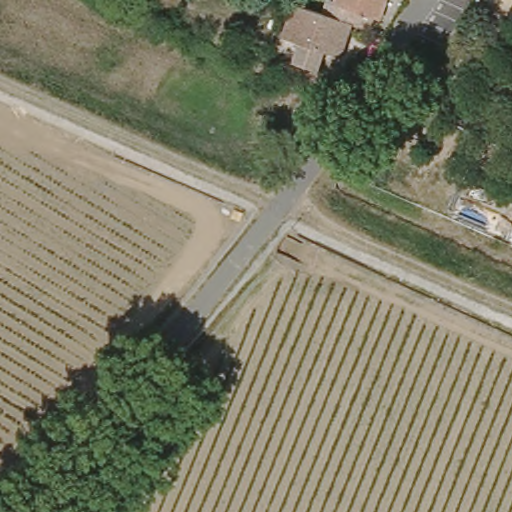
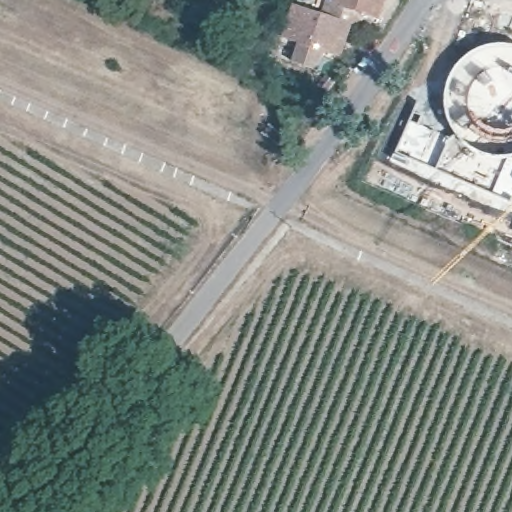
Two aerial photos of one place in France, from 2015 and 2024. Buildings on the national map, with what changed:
unchanged [(327,11),(331,0),(389,0),(384,17),(364,11),(360,24),(370,26),(366,37),(357,34),(349,57),(290,37),(301,2),(327,11)]
new [(485,46),(495,44),(506,44),(512,45),(512,200),(510,205),(394,157),(417,102),(447,102),(447,95),(449,84),(453,74),(459,65),(466,57),(475,51),(485,46)]

